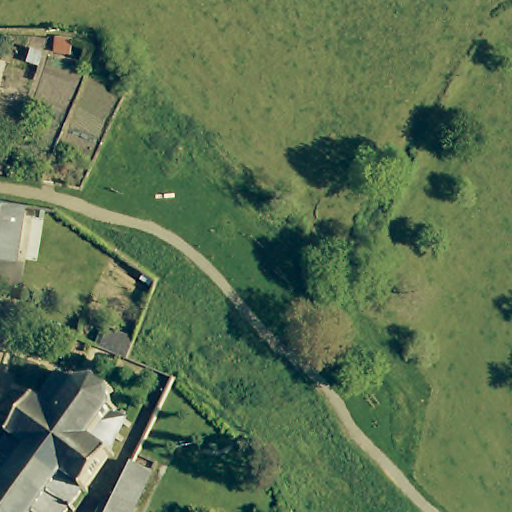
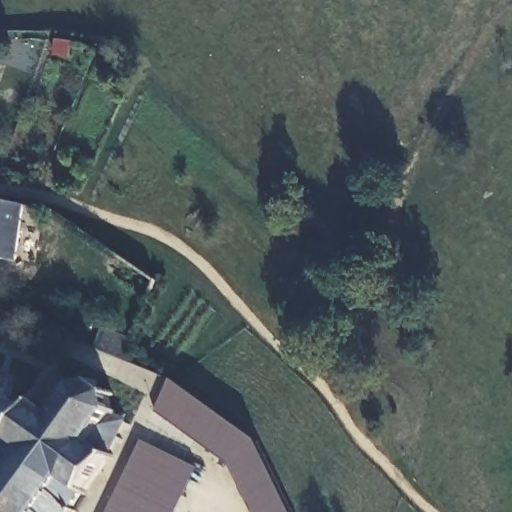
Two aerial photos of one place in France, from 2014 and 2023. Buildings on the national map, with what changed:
unchanged [(72,43),(69,56),(55,51),(59,39),(72,43)]
demolished [(173,157),(143,197),(124,181),(152,141),(173,157)]
unchanged [(0,175),(0,167),(2,167),(0,175)]
unchanged [(18,262),(0,259),(0,203),(28,206),(18,262)]
unchanged [(106,332),(134,343),(126,363),(125,364),(98,354),(106,332)]
unchanged [(86,374),(91,378),(100,375),(103,371),(106,372),(104,375),(119,385),(121,382),(124,384),(121,388),(122,401),(126,403),(125,406),(140,417),(138,422),(131,418),(126,427),(131,431),(129,436),(122,432),(114,444),(119,447),(123,446),(123,450),(115,450),(94,480),(98,483),(95,487),(91,485),(80,500),(82,502),(80,505),(78,504),(72,512),(0,512),(0,459),(6,450),(4,448),(5,445),(8,447),(18,432),(14,431),(16,428),(21,427),(42,399),(41,395),(45,391),(46,395),(68,366),(84,378),(86,374)]
new [(155,411),(173,379),(259,440),(293,512),(252,512),(230,465),(155,411)]
new [(106,512),(141,439),(198,468),(177,512),(106,512)]
demolished [(156,476),(139,512),(114,512),(117,506),(137,465),(140,467),(156,476)]

